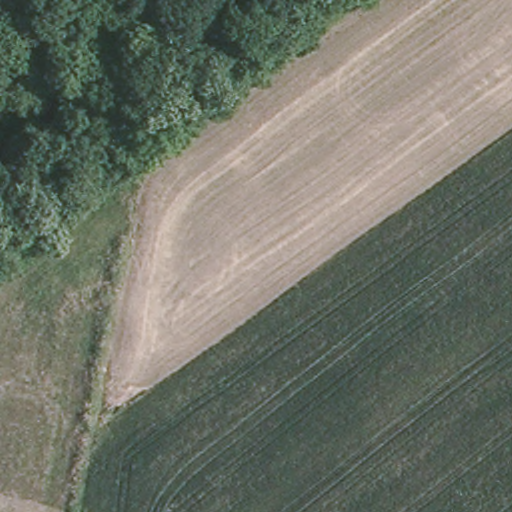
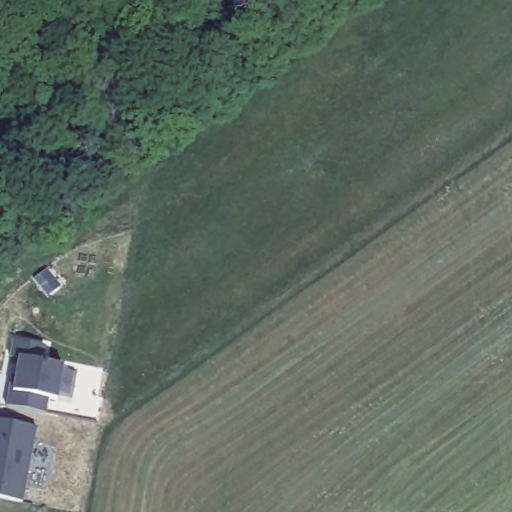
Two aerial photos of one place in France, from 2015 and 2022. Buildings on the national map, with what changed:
new [(44,363),(63,367),(57,401),(48,399),(46,414),(5,408),(10,381),(14,380),(17,360),(9,359),(13,340),(47,346),(44,363)]
new [(23,504),(0,499),(0,421),(37,428),(23,504)]

